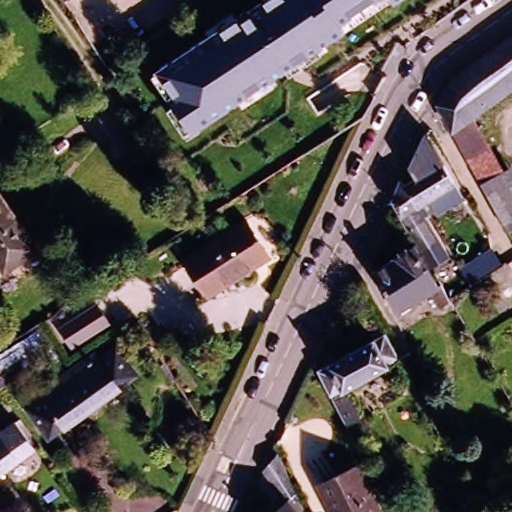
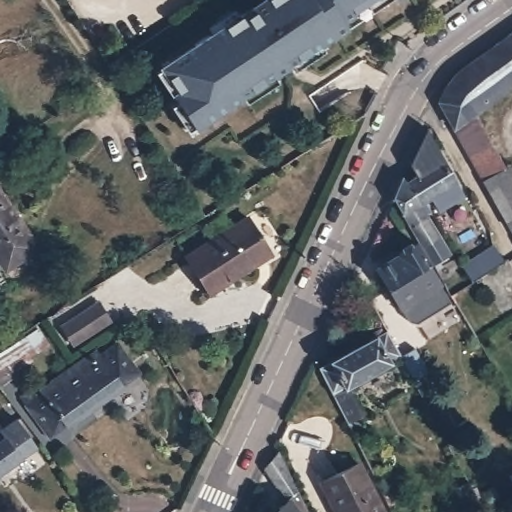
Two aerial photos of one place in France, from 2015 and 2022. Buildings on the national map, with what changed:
unchanged [(349,35),(194,128),(157,69),(253,7),(250,2),(254,0),(381,0),(343,22),(349,35)]
unchanged [(455,74),(462,68),(479,54),(492,44),(512,30),(512,87),(480,110),(453,130),(437,101),(440,95),(447,85),(455,74)]
unchanged [(480,110),(511,164),(482,179),(467,154),(453,130),(480,110)]
unchanged [(441,161),(462,195),(434,212),(425,197),(420,201),(422,202),(425,205),(425,207),(427,213),(423,216),(403,185),(441,161)]
unchanged [(482,179),(511,164),(512,165),(512,225),(508,227),(482,179)]
unchanged [(399,177),(403,185),(423,216),(440,243),(429,250),(437,262),(430,266),(389,200),(399,177)]
unchanged [(0,258),(0,189),(37,241),(4,263),(0,258)]
unchanged [(193,222),(187,212),(195,206),(202,216),(193,222)]
unchanged [(267,250),(241,267),(242,270),(208,291),(185,254),(244,215),(267,250)]
unchanged [(449,309),(447,305),(441,307),(430,290),(400,309),(376,270),(395,257),(394,255),(412,244),(439,287),(442,285),(450,295),(455,305),(449,309)]
unchanged [(470,278),(462,264),(492,244),(501,259),(470,278)]
unchanged [(112,323),(72,347),(59,326),(98,301),(112,323)]
unchanged [(383,329),(397,354),(412,345),(426,371),(412,380),(404,367),(399,358),(398,357),(389,362),(390,363),(347,386),(362,415),(346,423),(317,366),(383,329)]
unchanged [(34,352),(28,357),(32,361),(18,370),(20,373),(0,386),(0,345),(20,332),(34,352)]
unchanged [(30,405),(45,393),(44,390),(100,351),(104,356),(120,345),(137,371),(51,433),(46,427),(37,433),(22,413),(30,406),(30,405)]
unchanged [(40,445),(0,473),(0,433),(20,419),(40,445)]
unchanged [(286,499),(264,470),(262,468),(278,452),(305,512),(271,512),(286,499)]
unchanged [(320,483),(357,462),(382,512),(334,512),(320,483)]
unchanged [(462,510),(450,488),(466,480),(477,501),(462,510)]

